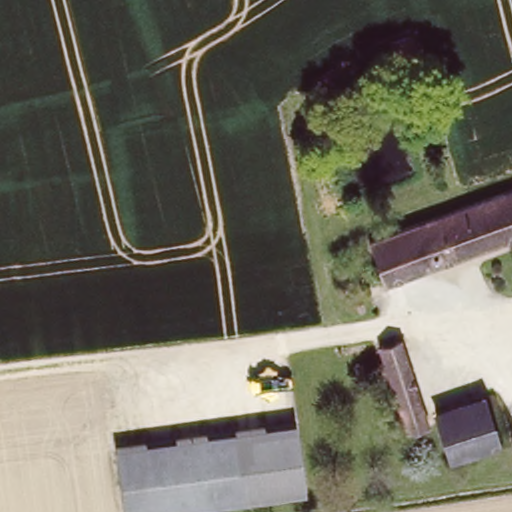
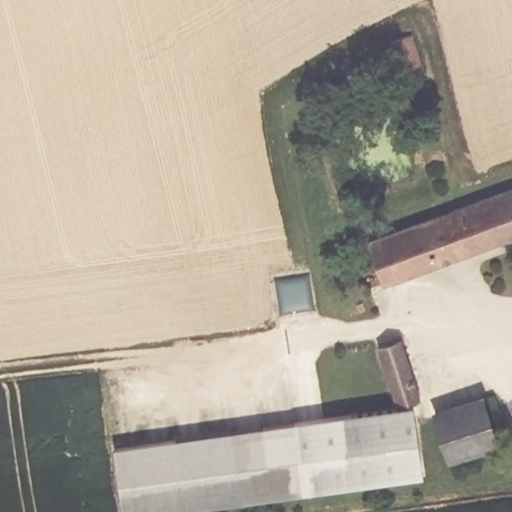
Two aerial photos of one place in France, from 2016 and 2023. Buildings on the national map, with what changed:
unchanged [(398,34),(415,72),(396,81),(379,43),(398,34)]
unchanged [(359,247),(478,203),(505,193),(512,191),(512,238),(375,290),(359,247)]
new [(294,424),(394,407),(376,346),(401,339),(420,400),(413,403),(423,476),(305,493),(294,424)]
demolished [(400,340),(428,421),(405,429),(376,349),(400,340)]
unchanged [(481,400),(497,446),(450,462),(434,416),(481,400)]
unchanged [(235,432),(294,424),(305,493),(245,501),(235,432)]
unchanged [(245,501),(166,512),(124,512),(117,449),(235,432),(245,501)]

